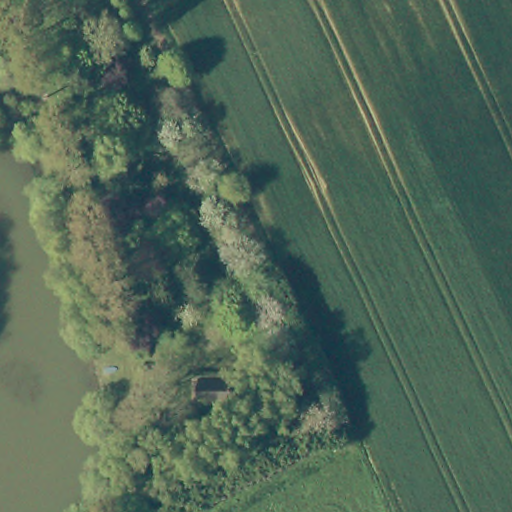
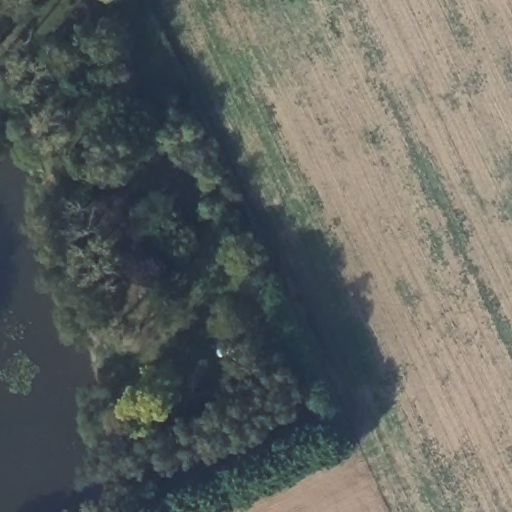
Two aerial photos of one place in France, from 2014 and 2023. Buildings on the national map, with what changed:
unchanged [(202,380),(239,381),(237,405),(199,403),(202,380)]

